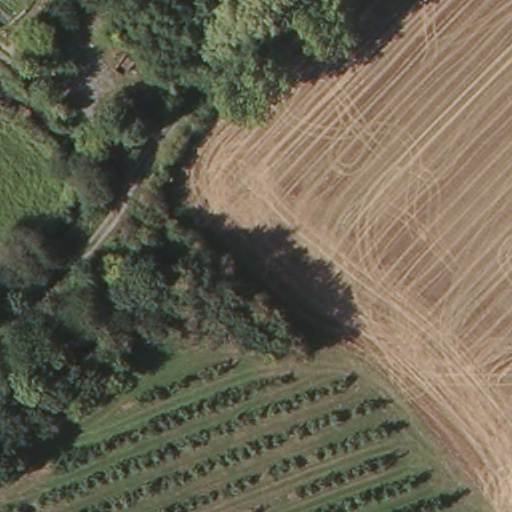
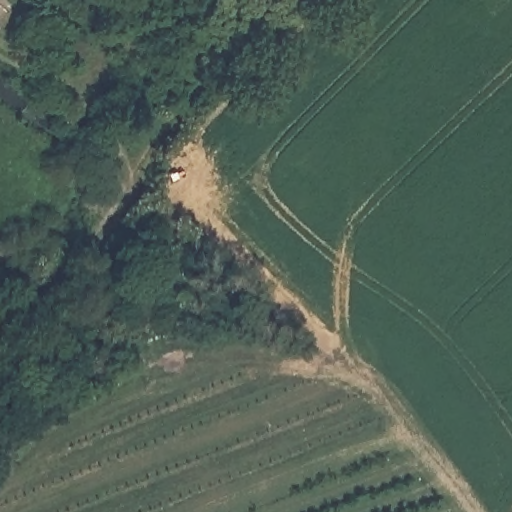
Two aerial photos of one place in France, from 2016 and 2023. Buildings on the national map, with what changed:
[]

